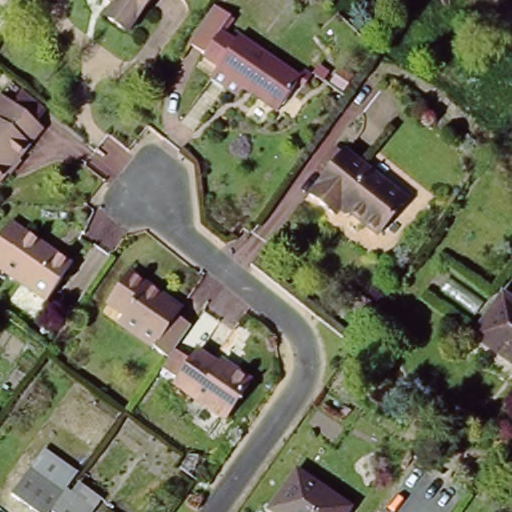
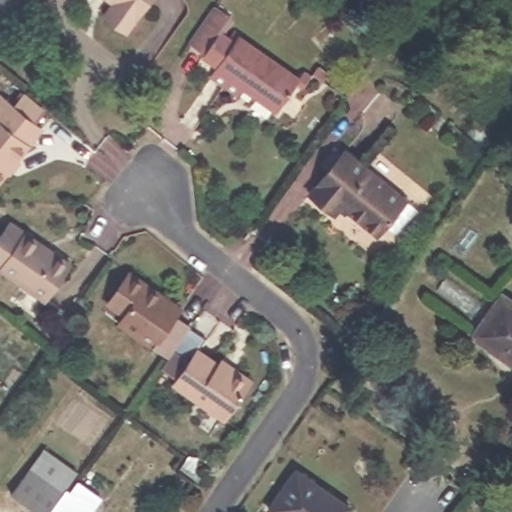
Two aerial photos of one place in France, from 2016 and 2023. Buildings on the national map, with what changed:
unchanged [(106,19),(115,5),(108,0),(152,0),(128,35),(106,19)]
unchanged [(311,79),(304,89),(298,85),(277,115),(243,91),(238,98),(211,79),(218,70),(203,59),(204,55),(191,46),(218,10),(231,20),(221,34),(235,45),(240,38),(300,82),(306,74),(311,79)]
unchanged [(0,103),(9,111),(22,95),(36,107),(24,123),(36,134),(0,180),(0,103)]
unchanged [(377,238),(342,210),(334,217),(310,197),(329,174),(321,167),(334,150),(343,157),(346,153),(407,203),(377,238)]
unchanged [(0,234),(5,226),(65,269),(41,304),(0,275),(0,234)]
unchanged [(168,360),(119,325),(123,320),(108,307),(113,300),(129,276),(166,302),(166,304),(180,313),(176,319),(191,330),(174,352),(168,360)]
unchanged [(503,295),(512,301),(512,358),(477,332),(503,295)]
unchanged [(190,364),(198,353),(219,368),(221,365),(249,385),(223,422),(174,387),(178,382),(161,370),(168,360),(174,352),(190,364)]
unchanged [(43,447),(78,470),(68,487),(74,490),(80,481),(104,500),(95,512),(56,512),(51,509),(49,512),(41,512),(11,493),(29,467),(43,447)]
unchanged [(291,475),(344,511),(344,512),(264,512),(291,475)]

